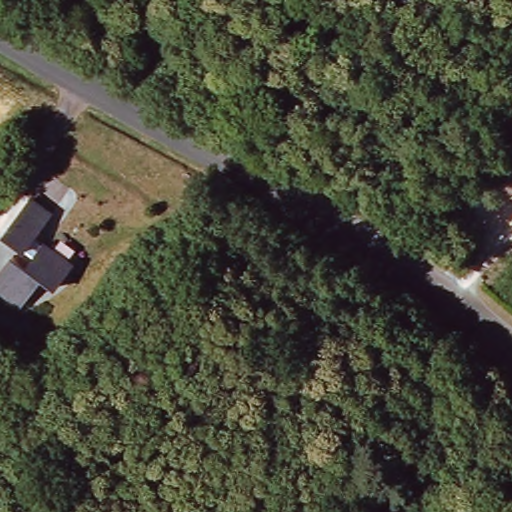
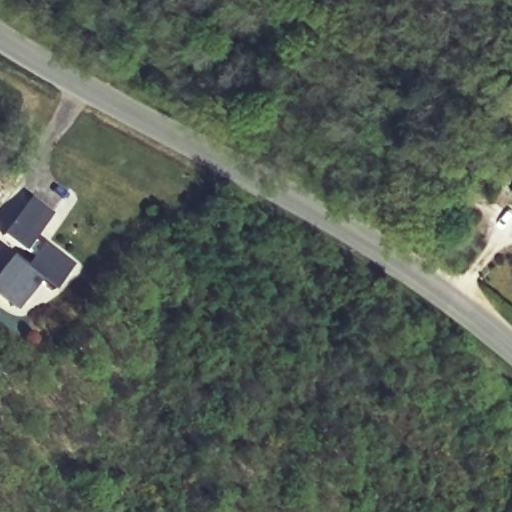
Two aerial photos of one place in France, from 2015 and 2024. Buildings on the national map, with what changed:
unchanged [(0,275),(24,240),(5,226),(33,190),(52,205),(35,228),(77,259),(53,292),(36,280),(18,306),(0,293),(0,275)]

